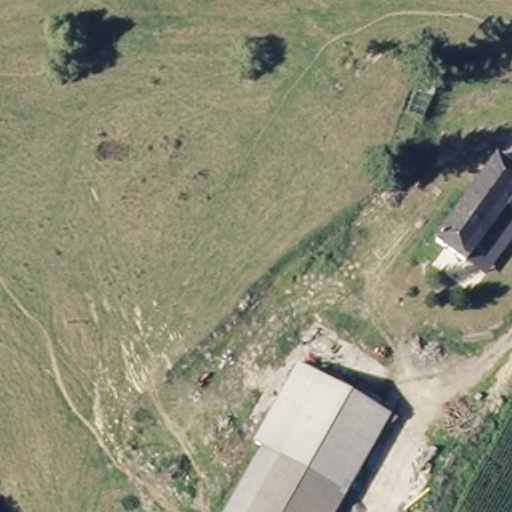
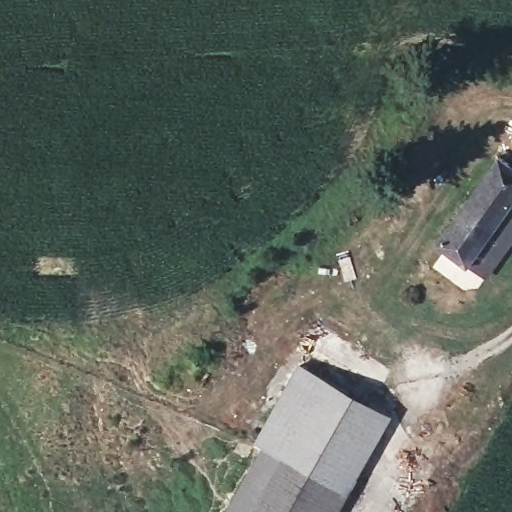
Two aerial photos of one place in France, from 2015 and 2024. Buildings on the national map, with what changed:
unchanged [(464,265),(428,245),(512,147),(512,206),(511,208),(464,265)]
unchanged [(512,209),(512,241),(480,278),(464,265),(511,208),(512,209)]
unchanged [(341,499),(315,485),(263,454),(250,446),(298,361),(393,416),(347,502),(341,499)]
unchanged [(333,512),(255,512),(242,504),(234,499),(263,454),(315,485),(341,499),(333,512)]
unchanged [(255,512),(237,512),(242,504),(255,512)]

